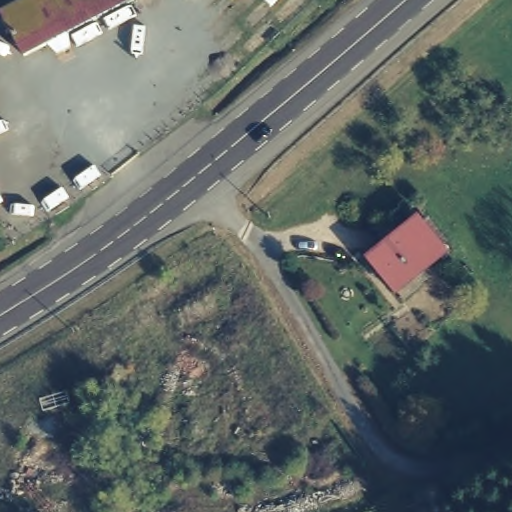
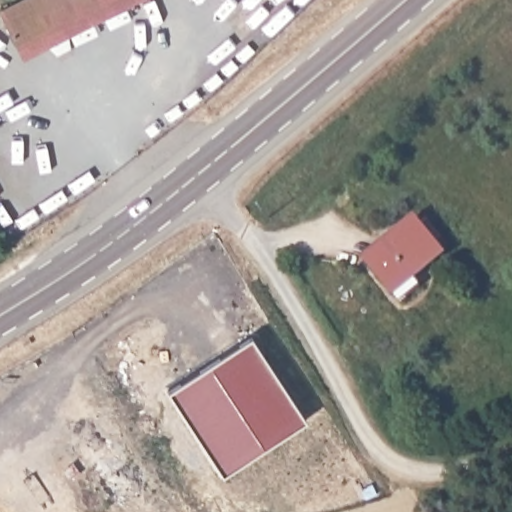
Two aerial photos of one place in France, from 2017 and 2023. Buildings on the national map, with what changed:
unchanged [(17,0),(126,0),(27,55),(1,9),(17,0)]
unchanged [(420,212),(445,252),(412,272),(420,282),(397,296),(369,252),(389,239),(385,233),(420,212)]
new [(256,338),(310,417),(232,472),(175,391),(256,338)]

